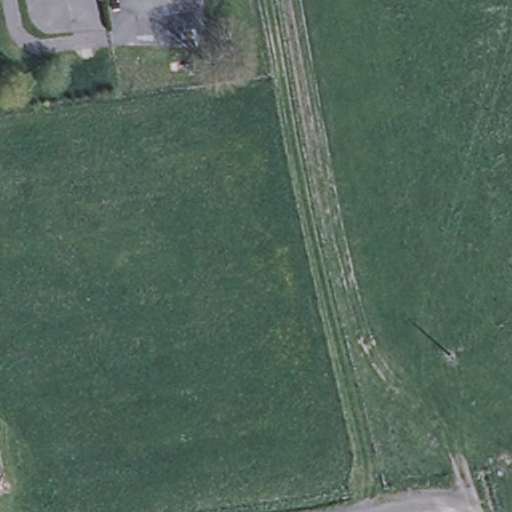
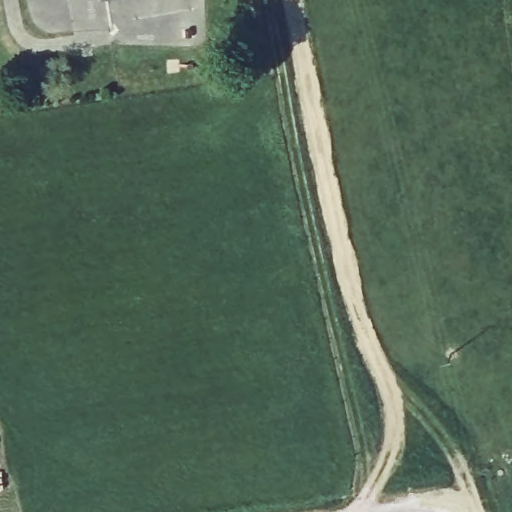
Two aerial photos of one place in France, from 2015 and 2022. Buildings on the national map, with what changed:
unchanged [(92,46),(92,54),(82,55),(80,47),(92,46)]

